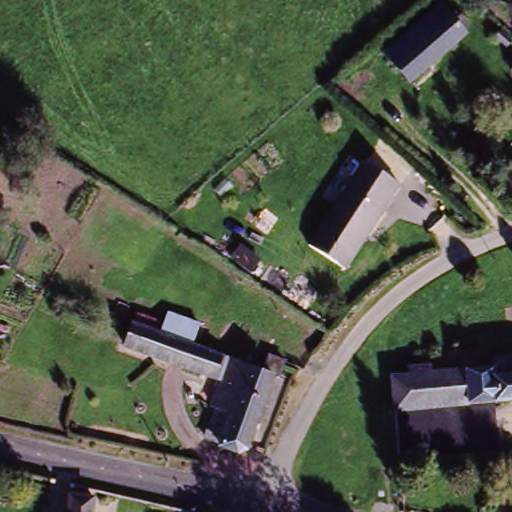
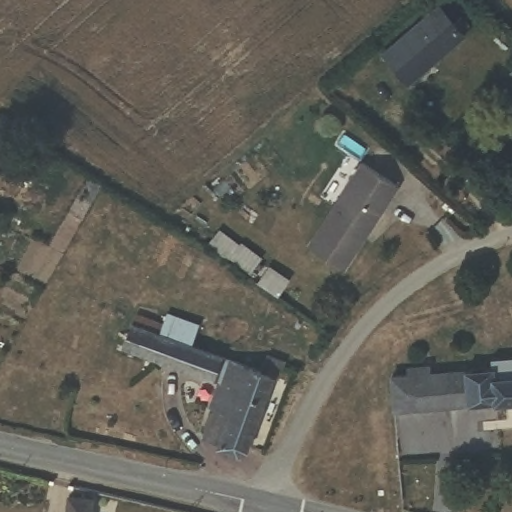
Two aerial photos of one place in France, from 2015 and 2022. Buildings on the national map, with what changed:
unchanged [(409,85),(385,57),(440,10),(455,27),(462,20),(470,29),(462,35),(464,38),(409,85)]
unchanged [(501,35),(510,46),(505,52),(495,41),(501,35)]
unchanged [(321,257),(360,164),(399,180),(360,275),(321,257)]
unchanged [(217,380),(133,347),(140,330),(144,319),(164,327),(168,316),(197,328),(187,349),(260,378),(266,361),(281,367),(275,384),(247,452),(223,443),(204,436),(215,406),(207,403),(217,380)]
unchanged [(477,366),(476,356),(512,354),(512,400),(445,407),(442,369),(477,366)]
unchanged [(385,375),(442,369),(445,407),(389,412),(385,375)]

